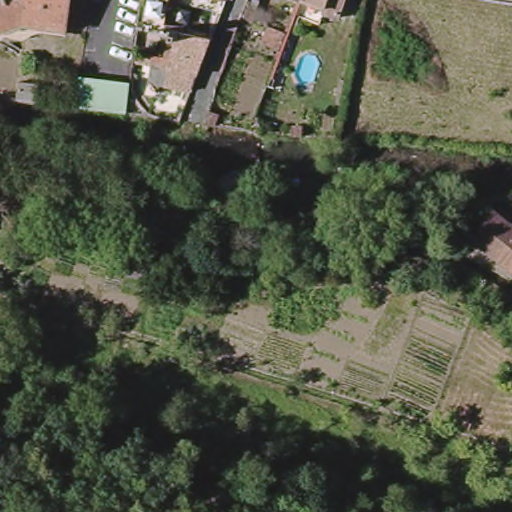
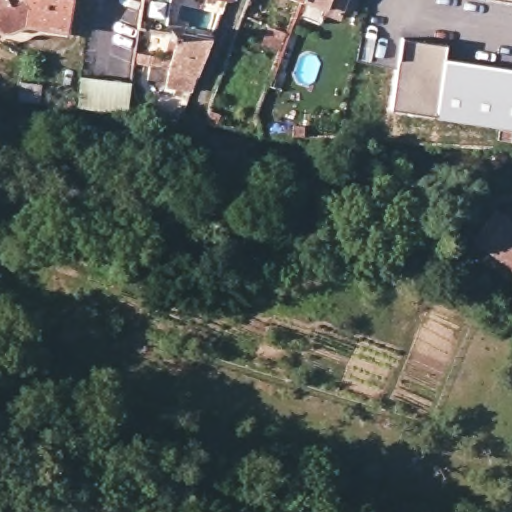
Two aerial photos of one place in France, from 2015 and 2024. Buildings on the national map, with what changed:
unchanged [(67,29),(27,23),(13,29),(8,29),(5,27),(1,26),(0,25),(0,0),(72,0),(67,29)]
unchanged [(167,58),(170,40),(164,39),(165,34),(140,30),(146,0),(178,0),(173,26),(185,29),(186,24),(194,25),(193,27),(208,29),(220,30),(216,40),(201,80),(164,72),(167,58)]
unchanged [(319,0),(349,0),(346,7),(319,0)]
unchanged [(286,49),(270,43),(275,30),(291,35),(286,49)]
new [(442,59),(512,69),(512,127),(391,108),(403,39),(445,45),(442,59)]
unchanged [(77,78),(132,84),(126,111),(73,106),(77,78)]
unchanged [(210,106),(205,105),(209,92),(215,94),(210,106)]
unchanged [(217,121),(209,120),(205,119),(210,108),(220,112),(217,121)]
unchanged [(292,124),(303,125),(302,132),(291,131),(292,124)]
unchanged [(512,269),(482,246),(473,239),(493,209),(512,224),(512,269)]
unchanged [(36,260),(10,255),(13,236),(41,241),(36,260)]

